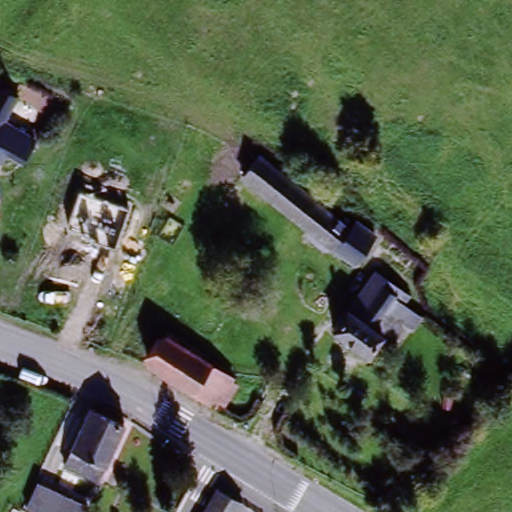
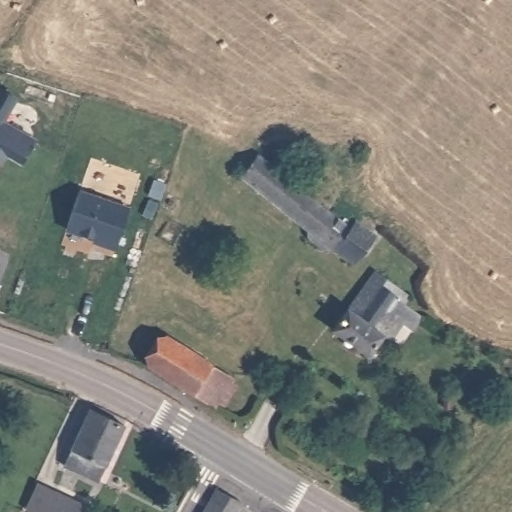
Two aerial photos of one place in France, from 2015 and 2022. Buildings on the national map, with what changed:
unchanged [(7,157),(1,166),(0,165),(0,88),(18,99),(5,123),(37,140),(22,166),(7,157)]
unchanged [(357,232),(375,247),(355,271),(245,180),(260,162),(352,239),(357,232)]
new [(115,252),(93,244),(94,242),(82,237),(82,236),(67,231),(80,194),(130,213),(115,252)]
unchanged [(372,358),(337,331),(352,311),(362,318),(380,293),(391,300),(372,327),(387,338),(372,358)]
unchanged [(219,408),(197,395),(152,368),(167,341),(213,368),(234,381),(219,408)]
unchanged [(125,429),(95,485),(60,466),(89,410),(125,429)]
unchanged [(42,487),(89,512),(28,512),(42,487)]
unchanged [(213,497),(239,511),(238,512),(205,512),(213,497)]

